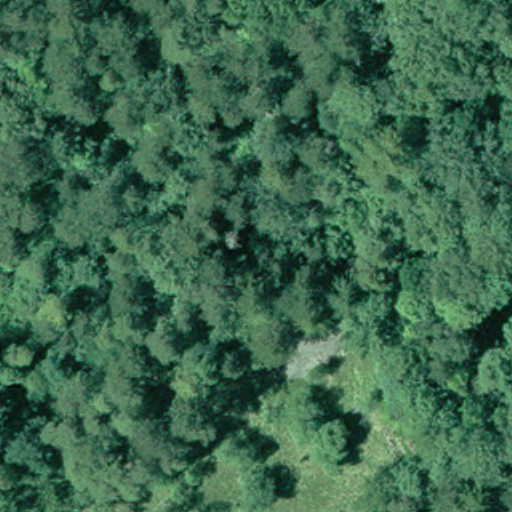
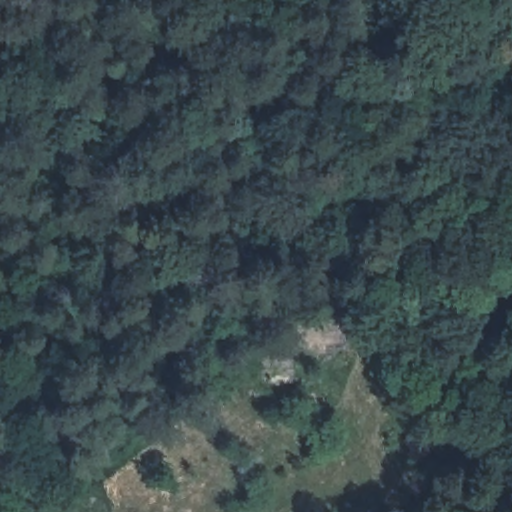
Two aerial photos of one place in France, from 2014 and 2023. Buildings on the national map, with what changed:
unchanged [(429,431),(424,425),(434,417),(452,440),(430,457),(417,441),(429,431)]

